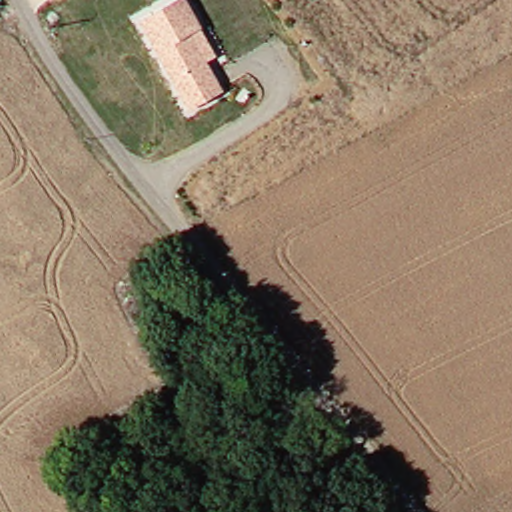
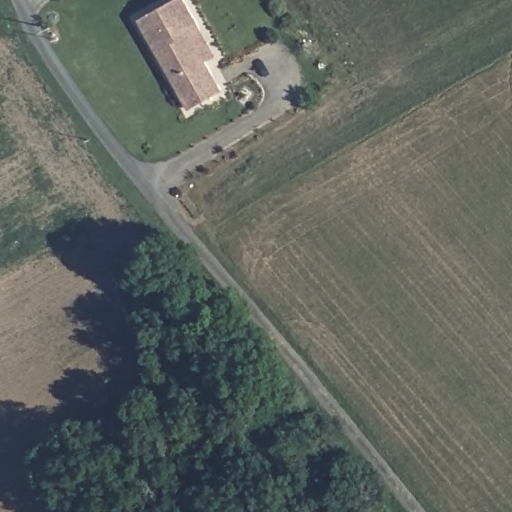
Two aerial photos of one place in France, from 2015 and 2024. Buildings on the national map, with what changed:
unchanged [(141,14),(164,0),(191,0),(203,20),(197,24),(213,53),(208,55),(224,84),(191,104),(141,14)]

